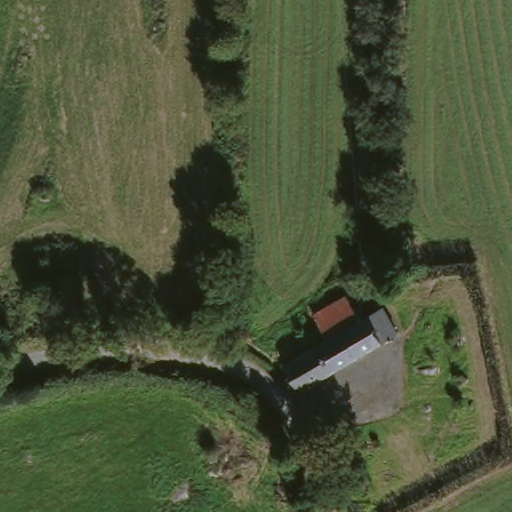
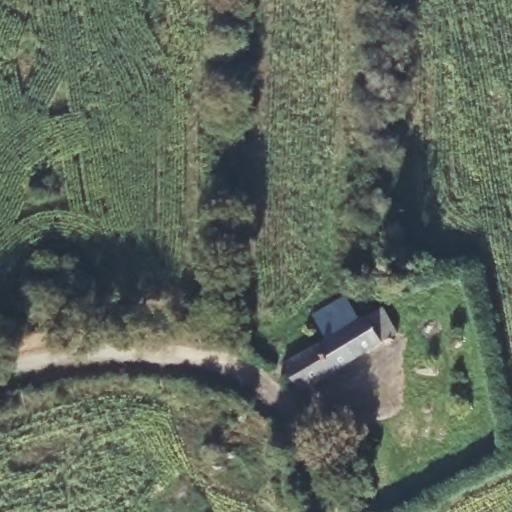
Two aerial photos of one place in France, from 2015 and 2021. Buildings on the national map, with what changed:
unchanged [(301,391),(280,363),(322,337),(308,314),(344,293),(360,315),(379,304),(394,330),(301,391)]
unchanged [(315,431),(303,415),(322,401),(348,437),(329,451),(315,431)]

